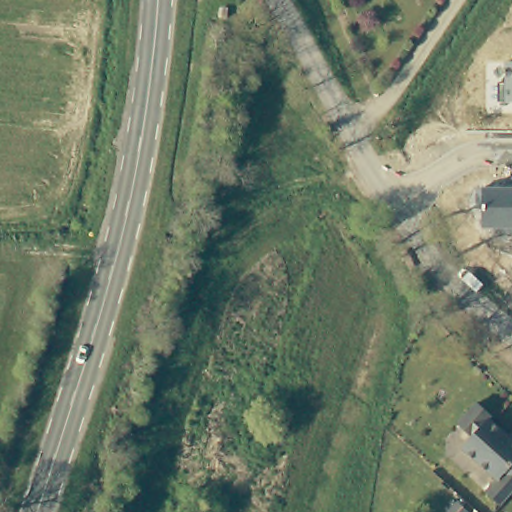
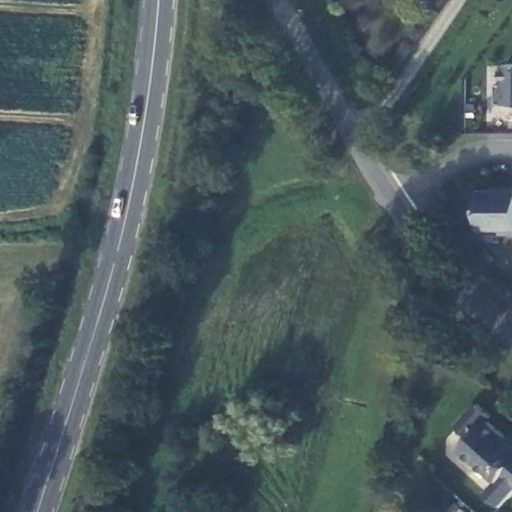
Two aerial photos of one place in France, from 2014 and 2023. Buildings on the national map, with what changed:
unchanged [(506,104),(499,103),(500,85),(507,84),(506,64),(512,64),(512,104),(506,104)]
unchanged [(483,230),(484,190),(512,189),(512,230),(483,230)]
unchanged [(484,491),(495,478),(461,446),(470,436),(456,423),(475,401),(489,414),(487,418),(506,436),(512,429),(512,489),(498,504),(484,491)]

